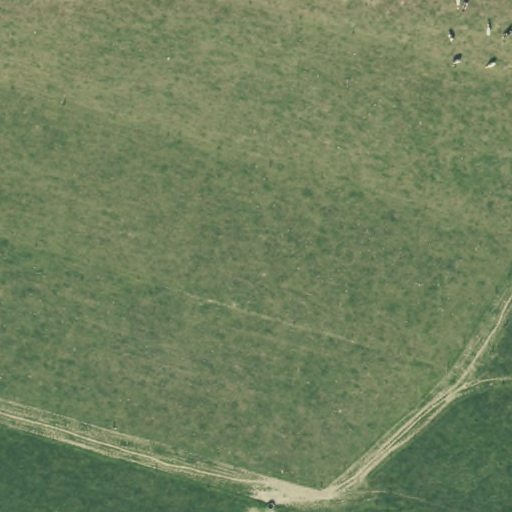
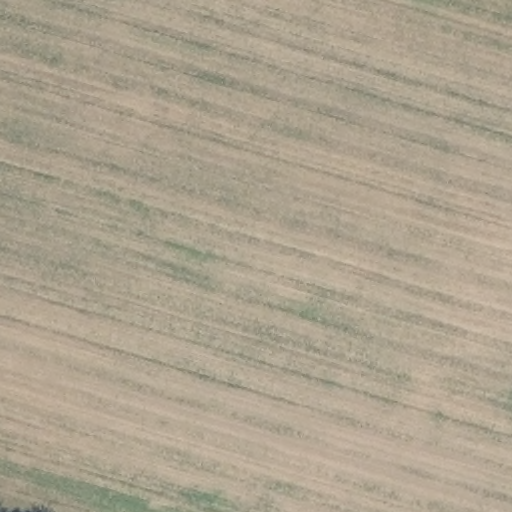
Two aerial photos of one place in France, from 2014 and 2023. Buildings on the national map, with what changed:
[]

